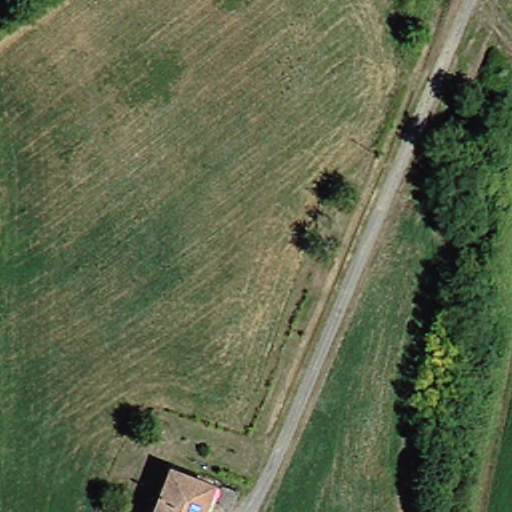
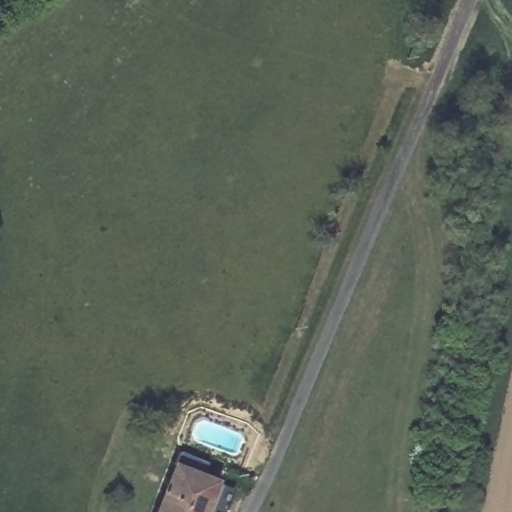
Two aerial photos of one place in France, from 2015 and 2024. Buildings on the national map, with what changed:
unchanged [(164,472),(212,491),(206,512),(147,512),(164,472)]

